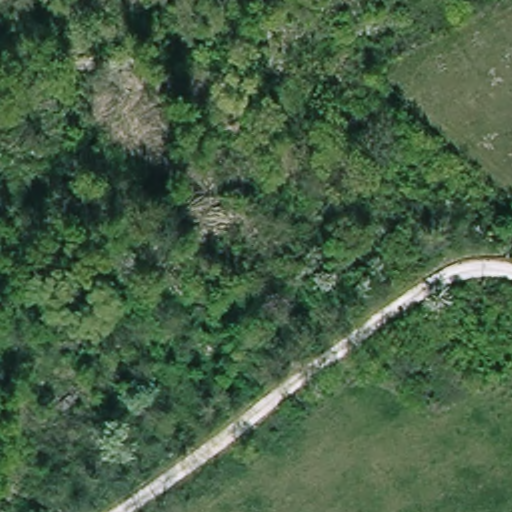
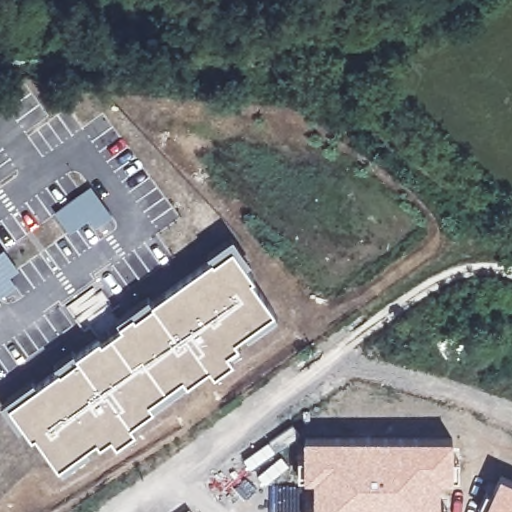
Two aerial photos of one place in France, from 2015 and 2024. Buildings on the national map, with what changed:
new [(92,187),(112,215),(97,226),(91,217),(71,232),(56,212),(92,187)]
new [(38,383),(58,368),(54,365),(74,350),(77,354),(101,337),(103,340),(121,326),(120,323),(117,320),(149,296),(153,300),(212,258),(208,253),(233,235),(252,261),(250,262),(259,275),(256,276),(253,278),(270,302),(275,300),(282,313),(278,315),(240,343),(228,352),(234,360),(216,373),(210,365),(132,424),(136,430),(117,442),(112,434),(100,442),(97,438),(58,466),(36,433),(32,436),(24,425),(19,429),(1,403),(34,380),(38,383)]
new [(18,270),(9,276),(15,286),(0,297),(0,253),(4,250),(18,270)]
new [(440,478),(440,512),(401,512),(401,511),(369,512),(314,512),(314,480),(304,480),(304,437),(453,437),(453,479),(440,478)]
new [(500,473),(512,479),(512,512),(483,512),(482,511),(500,473)]

